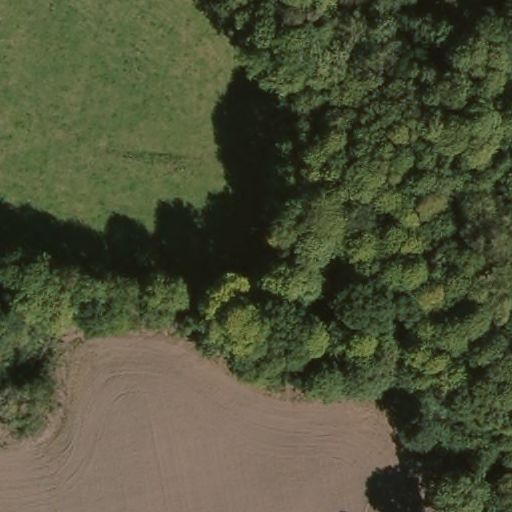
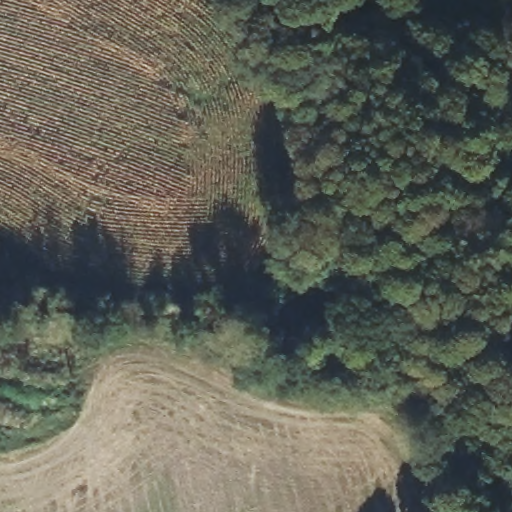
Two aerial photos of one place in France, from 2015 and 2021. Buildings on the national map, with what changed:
[]

